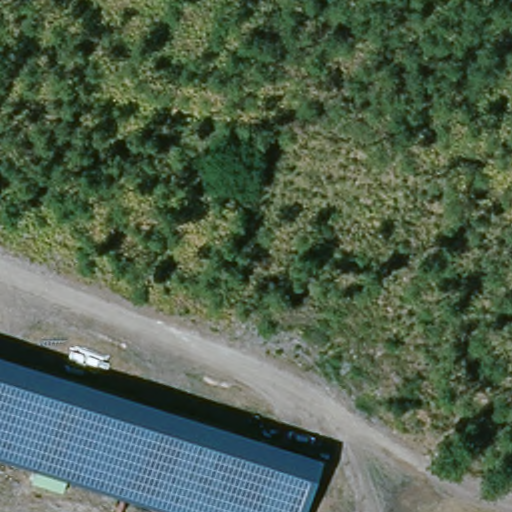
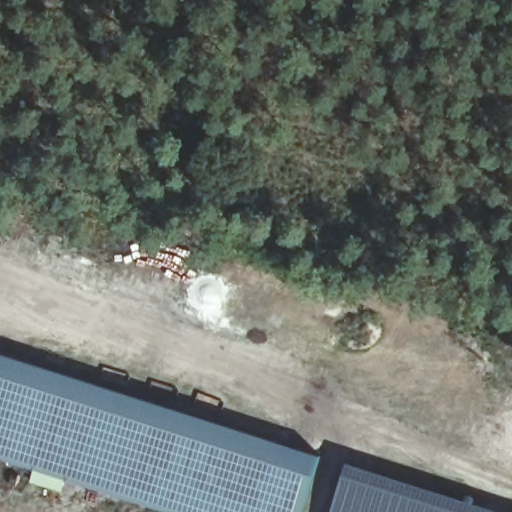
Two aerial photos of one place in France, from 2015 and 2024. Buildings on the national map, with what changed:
unchanged [(302,512),(177,512),(0,455),(0,353),(320,457),(302,512)]
new [(504,512),(333,512),(349,462),(504,512)]

